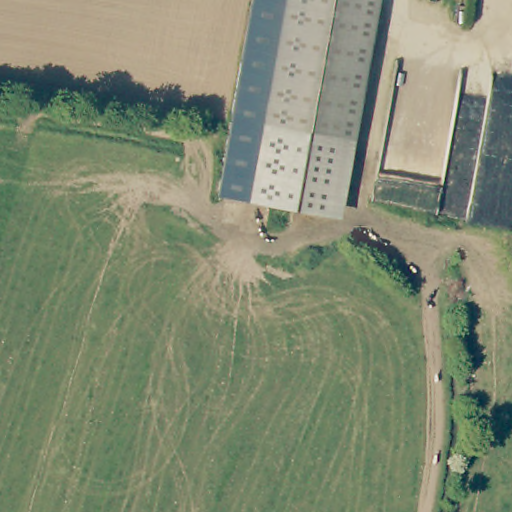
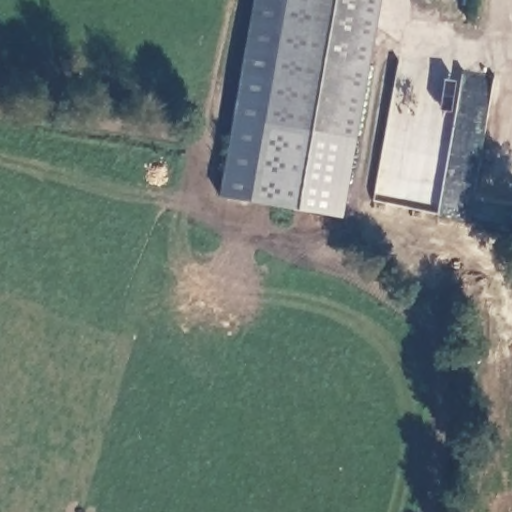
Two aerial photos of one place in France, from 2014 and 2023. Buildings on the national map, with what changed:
unchanged [(259,0),(387,0),(346,220),(225,198),(259,0)]

